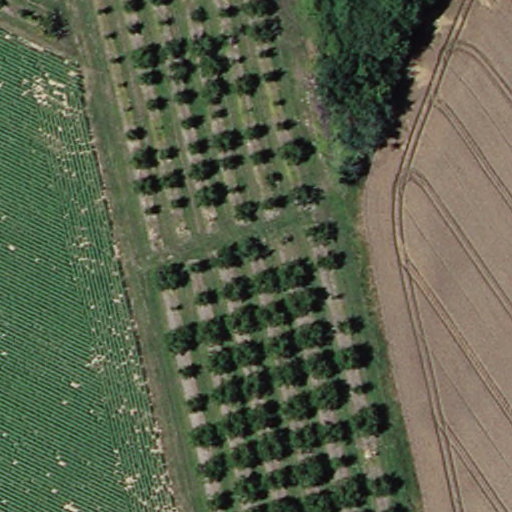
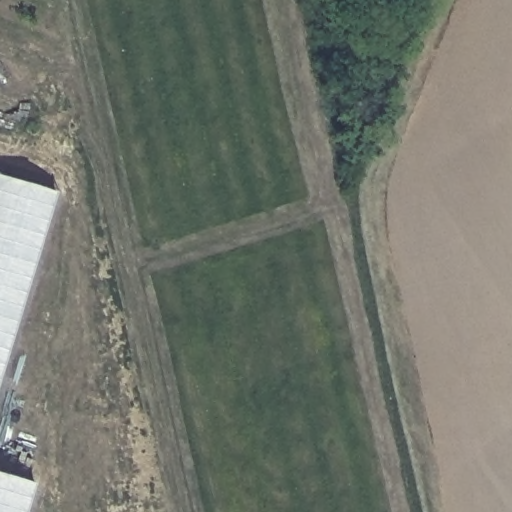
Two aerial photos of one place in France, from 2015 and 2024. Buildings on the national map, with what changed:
new [(59,185),(0,394),(0,167),(59,185)]
new [(31,482),(23,512),(0,512),(0,472),(31,482)]

